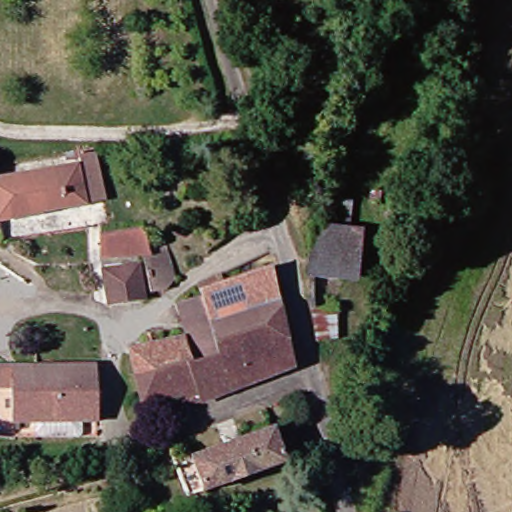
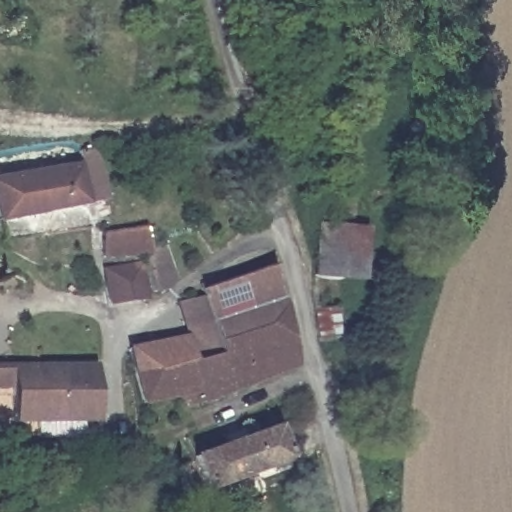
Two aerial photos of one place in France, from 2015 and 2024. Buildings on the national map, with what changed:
unchanged [(280,52),(249,54),(248,38),(280,37),(280,52)]
unchanged [(18,241),(6,243),(0,208),(0,178),(87,162),(85,146),(103,145),(110,197),(14,214),(18,241)]
unchanged [(314,277),(319,228),(334,230),(337,204),(353,207),(350,232),(345,281),(314,277)]
unchanged [(108,260),(102,237),(148,230),(151,250),(148,251),(149,255),(108,260)]
unchanged [(157,293),(149,255),(148,251),(151,250),(170,247),(182,289),(157,293)]
unchanged [(151,301),(115,307),(110,272),(146,266),(151,294),(151,301)]
unchanged [(204,403),(201,393),(149,405),(141,379),(218,358),(204,298),(200,282),(220,271),(224,282),(274,268),(299,369),(252,386),(232,393),(204,403)]
unchanged [(218,358),(141,379),(137,350),(186,338),(181,303),(204,298),(218,358)]
unchanged [(339,314),(341,341),(318,343),(318,314),(339,314)]
unchanged [(0,422),(0,370),(101,367),(104,422),(19,425),(19,423),(0,422)]
unchanged [(184,460),(203,453),(282,427),(294,461),(214,486),(197,492),(184,460)]

